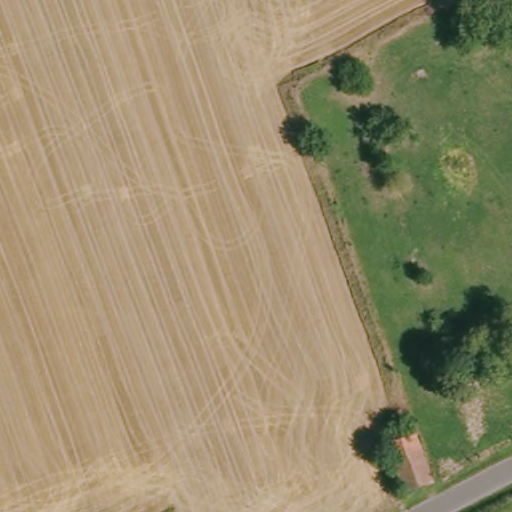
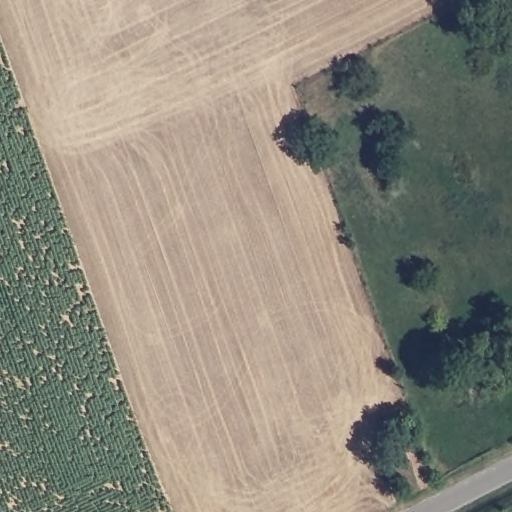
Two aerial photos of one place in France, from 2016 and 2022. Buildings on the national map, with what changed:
unchanged [(429,477),(399,488),(383,440),(412,430),(429,477)]

